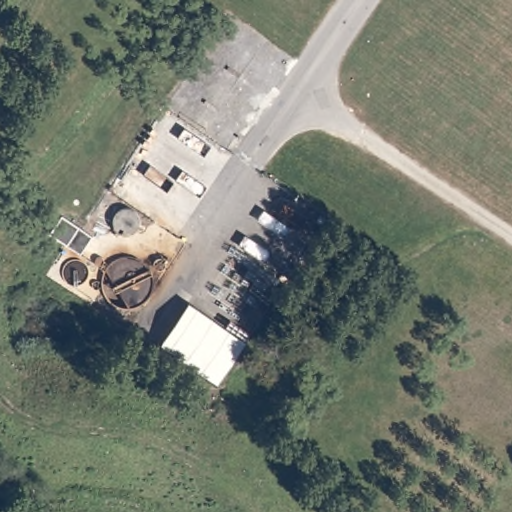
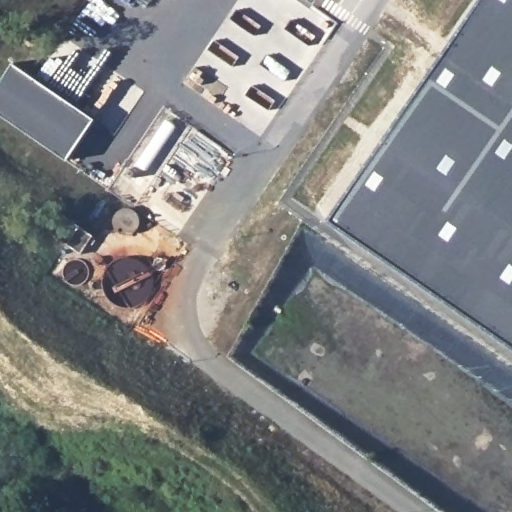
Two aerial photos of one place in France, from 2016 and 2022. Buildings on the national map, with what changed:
new [(512,347),(328,220),(478,0),(512,0),(512,347)]
new [(65,160),(0,116),(0,80),(11,64),(93,119),(65,160)]
unchanged [(78,220),(92,230),(80,248),(65,238),(78,220)]
demolished [(246,341),(220,382),(161,345),(191,303),(246,341)]

